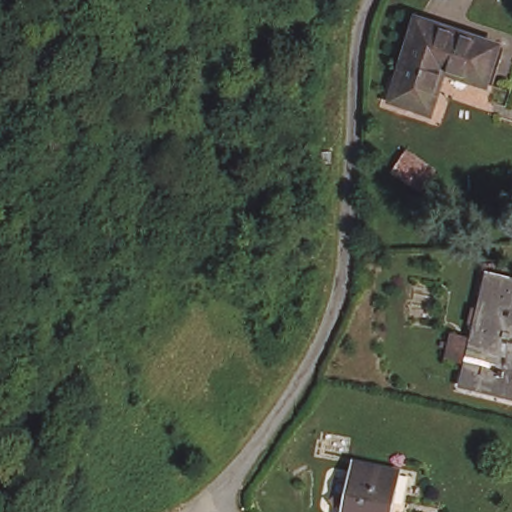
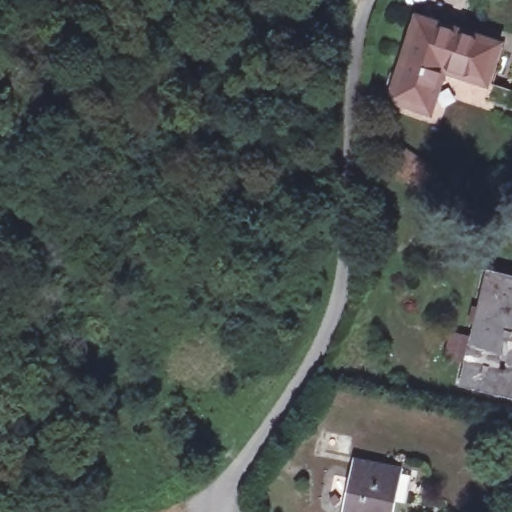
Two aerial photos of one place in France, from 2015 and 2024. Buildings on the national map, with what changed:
unchanged [(417,21),(497,52),(484,88),(439,72),(425,112),(388,99),(417,21)]
unchanged [(512,277),(512,393),(464,381),(492,272),(512,277)]
unchanged [(401,471),(397,512),(338,512),(344,465),(401,471)]

